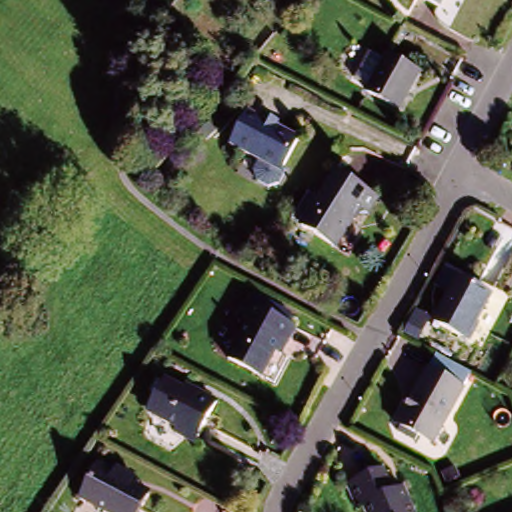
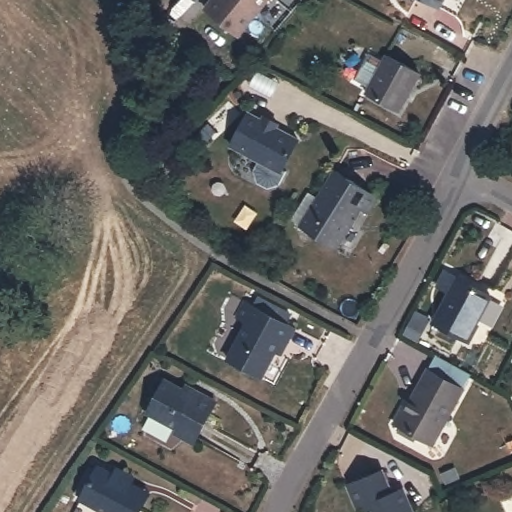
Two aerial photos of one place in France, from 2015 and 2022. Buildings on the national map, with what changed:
unchanged [(198,1),(178,21),(171,14),(184,0),(197,0),(198,1)]
new [(217,0),(272,0),(240,39),(207,12),(217,0)]
unchanged [(432,13),(410,0),(440,0),(432,13)]
unchanged [(369,95),(354,86),(369,60),(384,69),(389,62),(419,79),(399,118),(366,101),(369,95)]
unchanged [(296,141),(278,171),(281,174),(273,187),(261,190),(251,183),(248,172),(253,163),(226,146),(246,112),(296,141)]
unchanged [(375,199),(361,220),(355,215),(348,228),(350,229),(335,253),(294,227),(288,223),(306,196),(313,199),(330,171),(375,199)]
unchanged [(490,300),(464,346),(432,328),(458,282),(490,300)]
unchanged [(292,329),(284,343),(281,341),(259,379),(227,362),(248,323),(237,318),(246,303),(292,329)]
unchanged [(426,447),(388,426),(399,409),(402,410),(423,372),(458,392),(426,447)]
unchanged [(188,449),(167,436),(171,432),(140,414),(159,384),(189,402),(193,397),(213,410),(188,449)]
unchanged [(95,512),(70,498),(91,463),(106,472),(109,467),(133,480),(131,484),(140,489),(147,494),(136,512),(95,512)]
unchanged [(361,512),(360,509),(354,511),(344,488),(379,473),(389,496),(399,492),(407,512),(361,512)]

